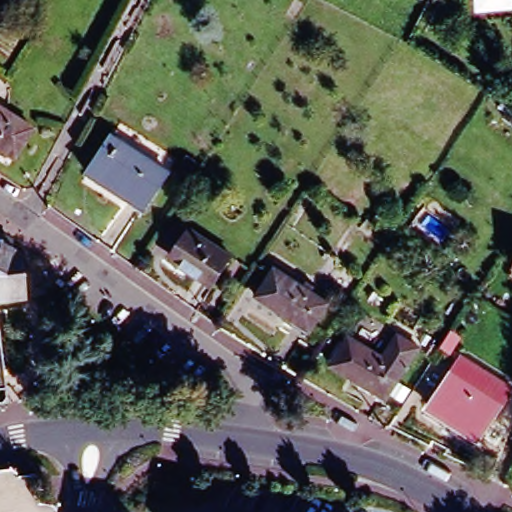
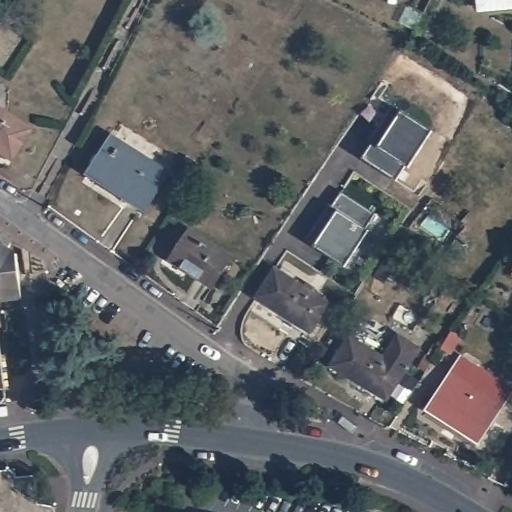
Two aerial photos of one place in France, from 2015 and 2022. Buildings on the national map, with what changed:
new [(362,158),(373,142),(369,139),(392,105),(402,110),(432,130),(408,166),(405,164),(397,180),(362,158)]
unchanged [(6,158),(0,155),(0,113),(29,131),(18,150),(10,161),(6,158)]
unchanged [(167,173),(142,209),(87,171),(111,135),(167,173)]
unchanged [(193,173),(192,176),(179,167),(186,155),(200,164),(193,173)]
new [(314,244),(305,240),(329,204),(332,206),(342,190),(375,212),(364,229),(367,231),(345,266),(314,244)]
unchanged [(236,257),(217,285),(181,261),(174,256),(177,250),(192,228),(236,257)]
unchanged [(7,246),(5,252),(15,258),(16,275),(20,302),(0,304),(0,242),(7,246)]
unchanged [(273,269),(327,303),(310,332),(255,296),(273,269)]
unchanged [(447,333),(450,329),(458,334),(447,351),(438,346),(447,333)]
unchanged [(349,340),(380,360),(396,337),(417,352),(383,402),(331,367),(349,340)]
unchanged [(7,404),(0,405),(0,347),(7,404)]
unchanged [(472,448),(424,415),(445,382),(456,367),(504,399),(493,415),(472,448)]
unchanged [(15,469),(17,479),(34,477),(37,505),(52,508),(51,512),(0,512),(0,471),(15,469)]

